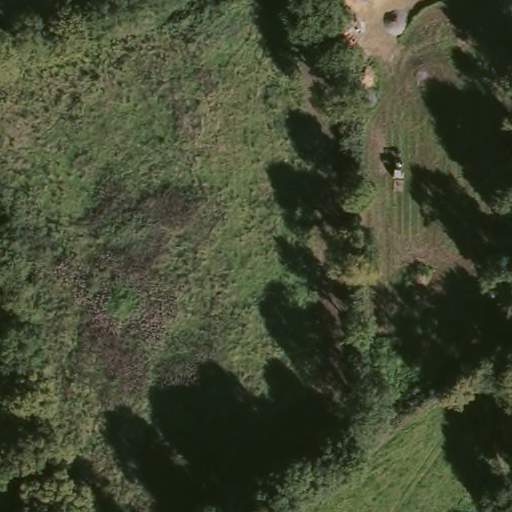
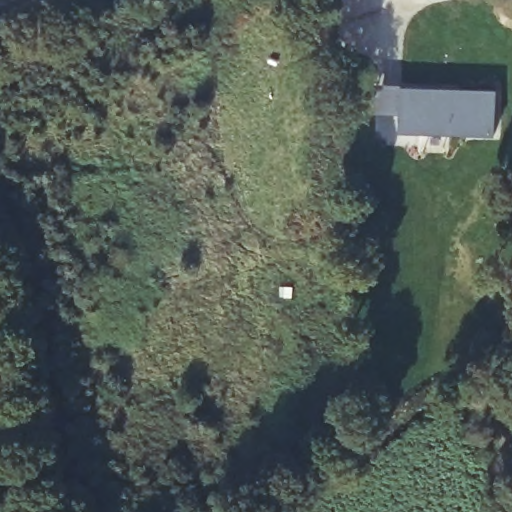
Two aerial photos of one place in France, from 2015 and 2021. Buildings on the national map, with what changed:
new [(378,82),(403,84),(402,90),(427,91),(427,87),(459,89),(458,95),(495,96),(494,134),(448,132),(448,130),(401,127),(402,112),(377,111),(378,82)]

